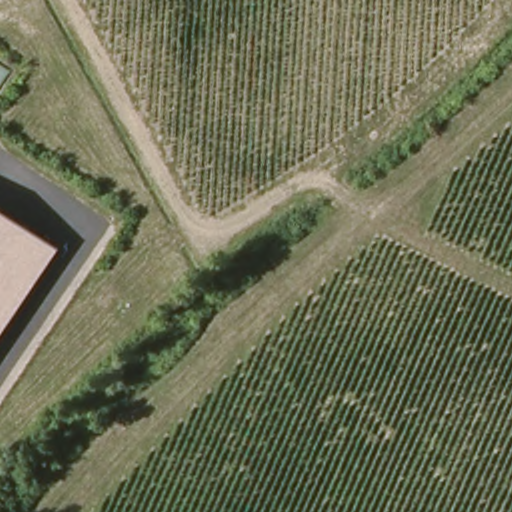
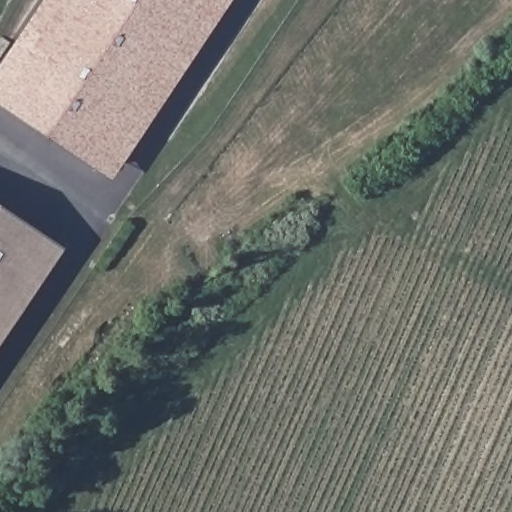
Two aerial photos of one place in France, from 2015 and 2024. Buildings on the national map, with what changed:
new [(197,46),(115,176),(0,99),(0,90),(58,0),(215,0),(190,40),(197,46)]
unchanged [(0,341),(0,209),(61,249),(0,341)]

